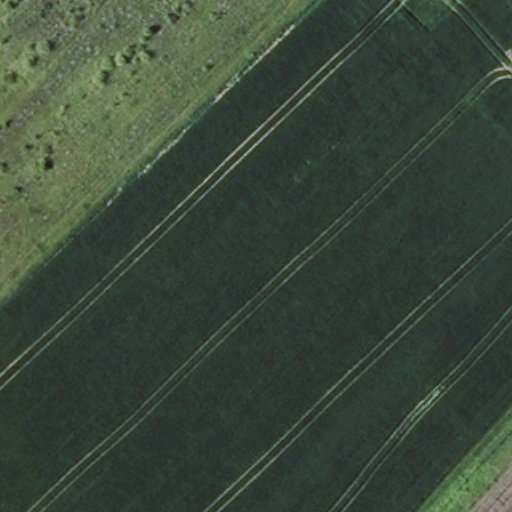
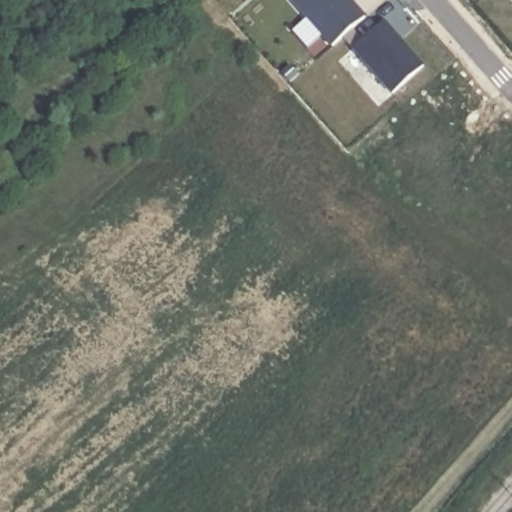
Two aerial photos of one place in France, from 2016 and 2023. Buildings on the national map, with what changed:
new [(349,0),(367,20),(334,49),(291,1),(292,0),(349,0)]
new [(391,94),(354,50),(384,23),(424,65),(391,94)]

